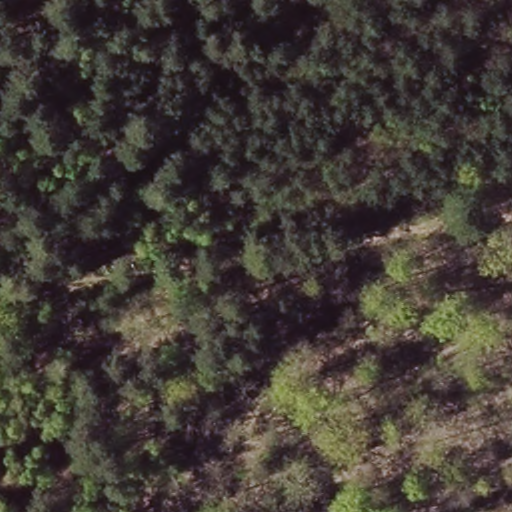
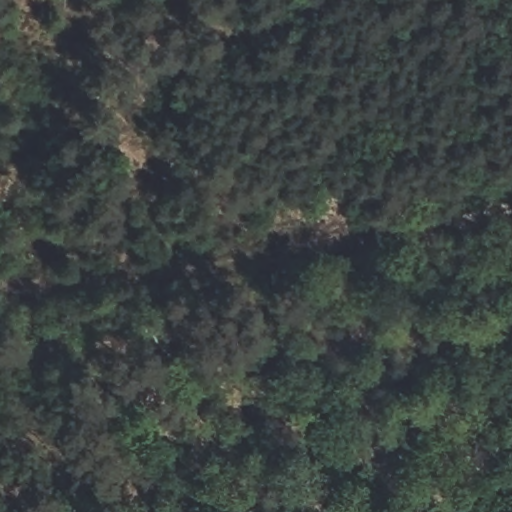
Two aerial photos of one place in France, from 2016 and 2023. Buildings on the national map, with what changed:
[]

